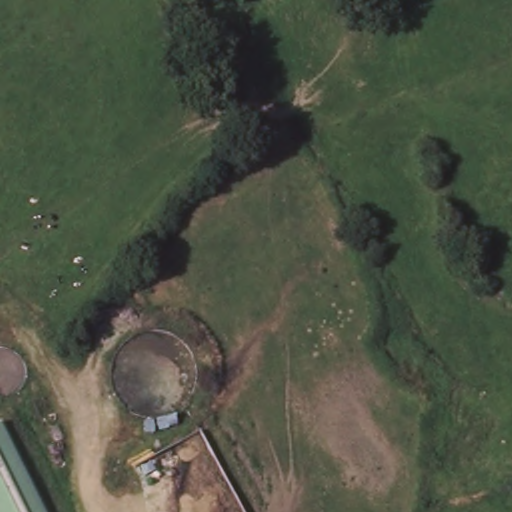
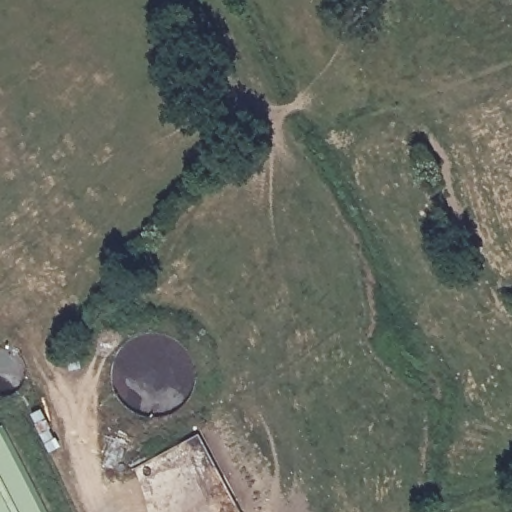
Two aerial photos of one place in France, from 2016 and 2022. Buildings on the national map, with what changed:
unchanged [(46,512),(0,512),(0,426),(2,425),(17,456),(46,512)]

